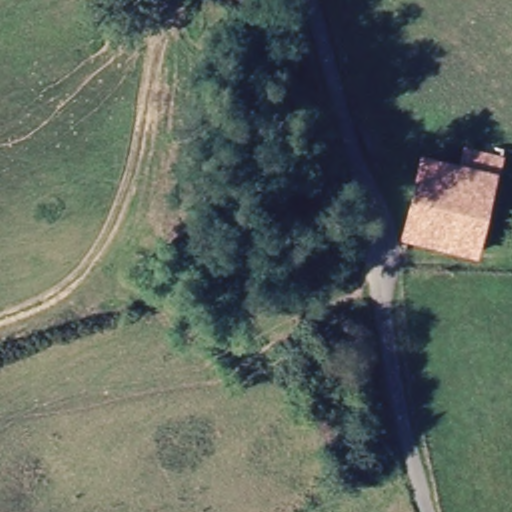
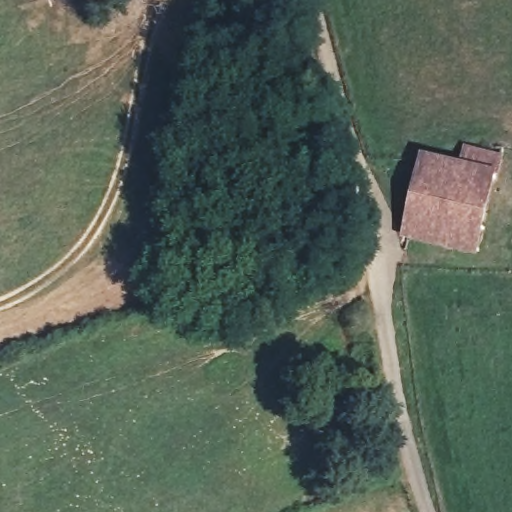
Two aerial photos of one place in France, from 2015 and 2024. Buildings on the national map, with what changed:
unchanged [(495,179),(483,177),(475,218),(408,205),(414,152),(458,158),(461,144),(482,147),(485,139),(502,143),(495,179)]
unchanged [(475,218),(478,219),(473,246),(405,232),(408,205),(475,218)]

